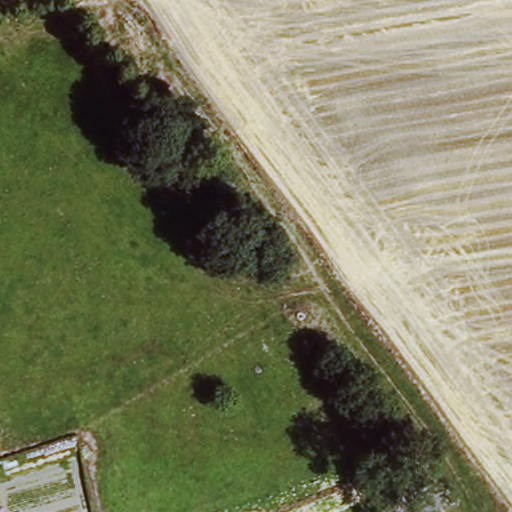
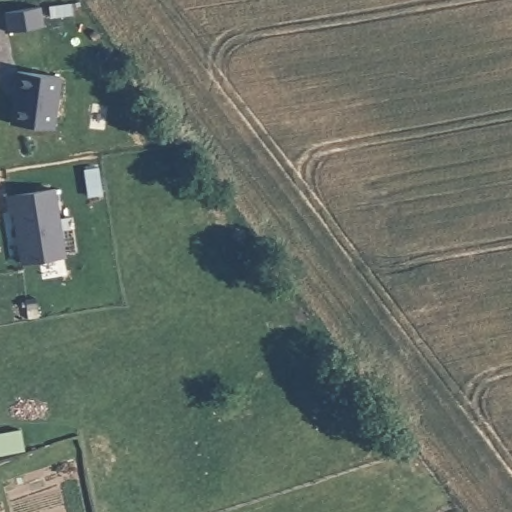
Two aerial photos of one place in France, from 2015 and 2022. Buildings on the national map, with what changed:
new [(40,7),(44,27),(9,33),(5,13),(40,7)]
new [(14,74),(57,79),(51,130),(8,124),(14,74)]
new [(50,189),(59,255),(18,261),(11,211),(7,212),(5,196),(50,189)]

